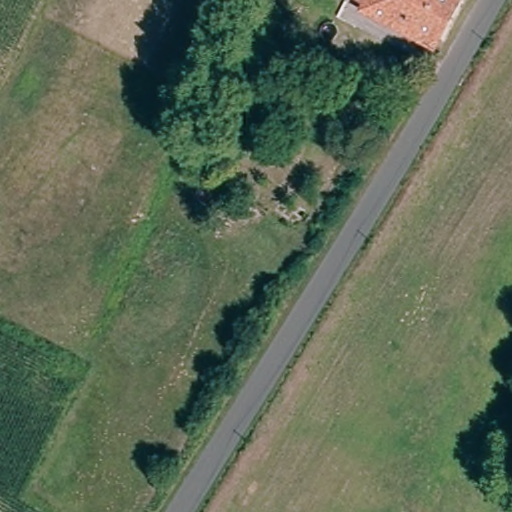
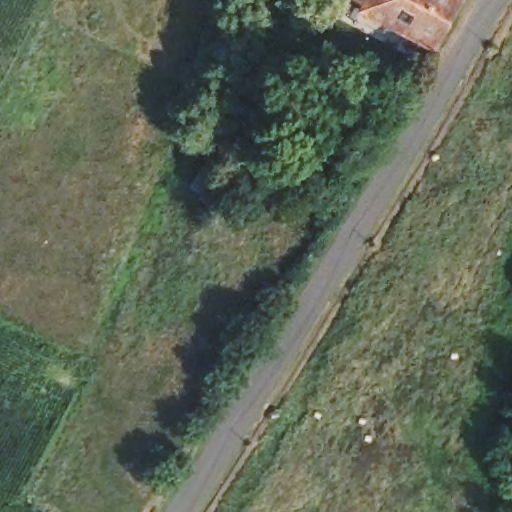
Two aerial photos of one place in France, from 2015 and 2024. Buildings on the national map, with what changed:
unchanged [(437,54),(360,22),(362,16),(343,6),(346,0),(463,0),(437,54)]

